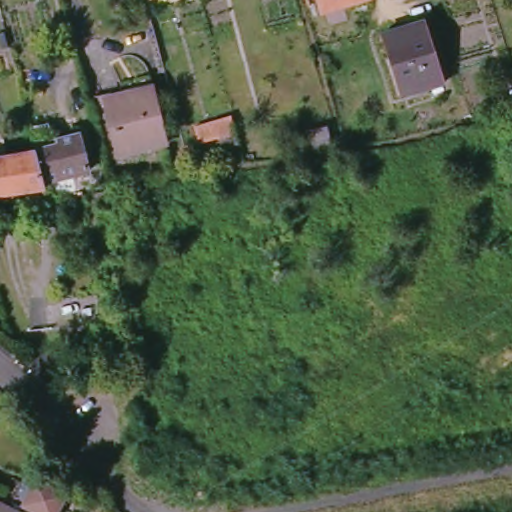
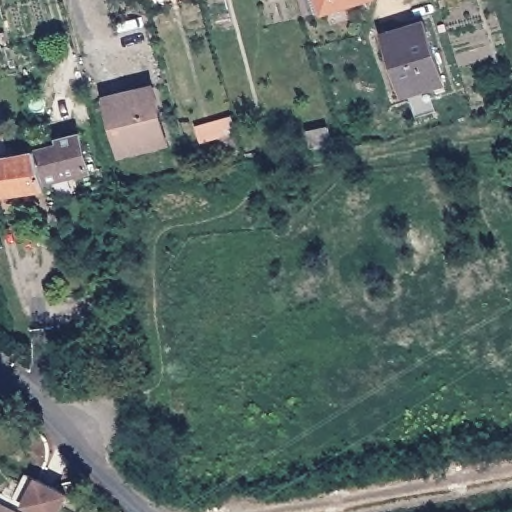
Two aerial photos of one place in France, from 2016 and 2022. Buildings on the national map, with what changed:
unchanged [(318,0),(363,0),(322,13),(318,0)]
unchanged [(383,35),(424,22),(443,83),(402,96),(383,35)]
unchanged [(105,99),(153,88),(167,144),(119,156),(105,99)]
unchanged [(233,116),(237,133),(192,144),(187,127),(233,116)]
unchanged [(38,153),(36,146),(59,140),(58,135),(79,129),(89,166),(44,178),(38,153)]
unchanged [(9,158),(38,153),(44,178),(45,183),(17,187),(20,208),(0,211),(0,154),(8,153),(9,158)]
unchanged [(0,492),(22,504),(35,480),(54,492),(43,512),(0,512),(0,492)]

